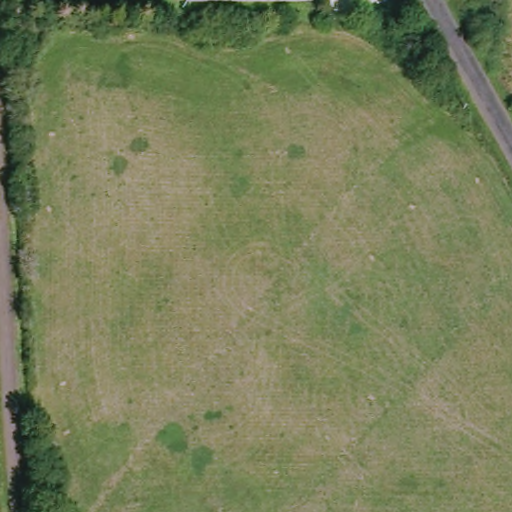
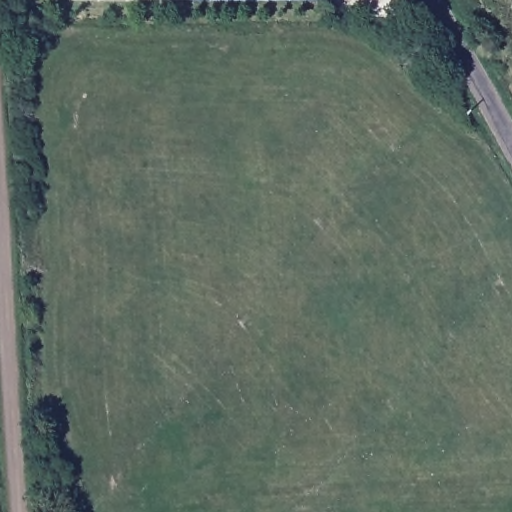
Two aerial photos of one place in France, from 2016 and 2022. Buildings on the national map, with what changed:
unchanged [(329,0),(185,1),(185,0),(329,0)]

